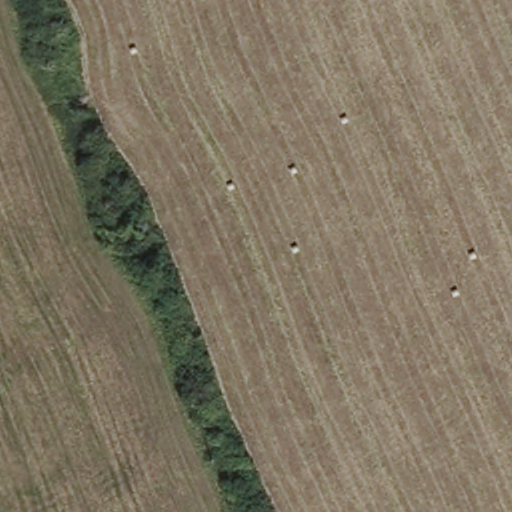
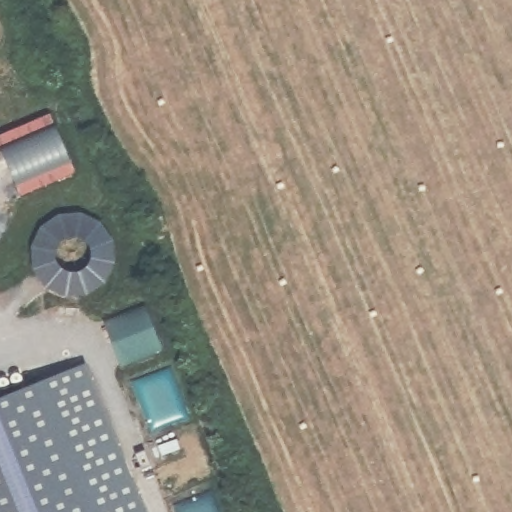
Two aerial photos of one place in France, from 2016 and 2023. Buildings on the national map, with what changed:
new [(113,262),(111,270),(107,277),(102,283),(95,288),(88,292),(81,295),(73,296),(65,295),(57,292),(50,288),(44,283),(39,277),(35,270),(32,262),(32,255),(32,247),(35,239),(39,232),(44,226),(50,221),(57,217),(65,214),(73,214),(81,214),(88,217),(95,221),(102,226),(107,232),(111,239),(113,247),(114,255),(113,262)]
new [(145,304),(161,351),(122,363),(105,318),(145,304)]
new [(86,358),(147,512),(0,512),(0,394),(86,358)]

